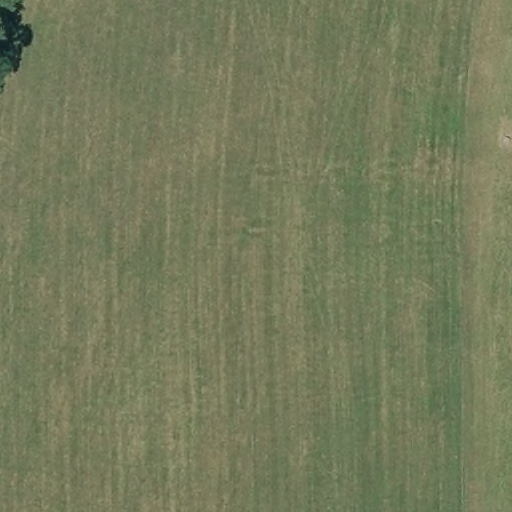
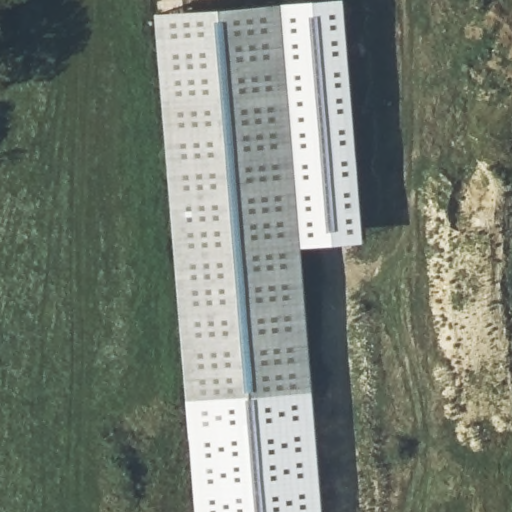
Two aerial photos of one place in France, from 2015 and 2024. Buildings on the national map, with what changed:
new [(310,393),(185,405),(152,14),(279,4),(310,393)]

